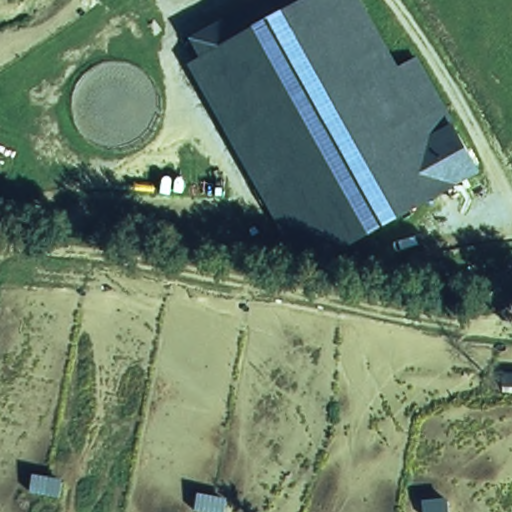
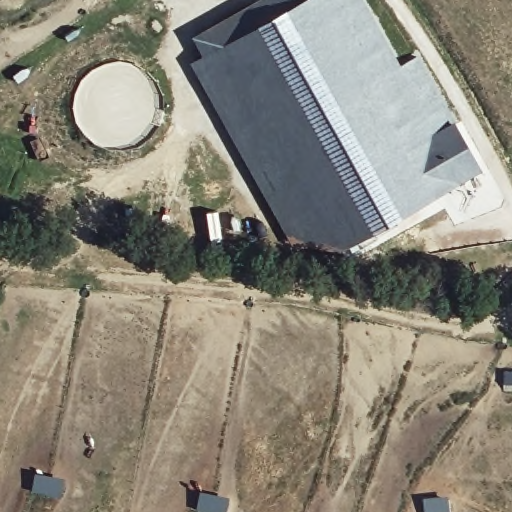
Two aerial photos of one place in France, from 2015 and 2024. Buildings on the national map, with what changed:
unchanged [(399,66),(417,55),(483,176),(340,255),(290,246),(187,68),(198,61),(188,38),(258,0),(363,0),(399,66)]

